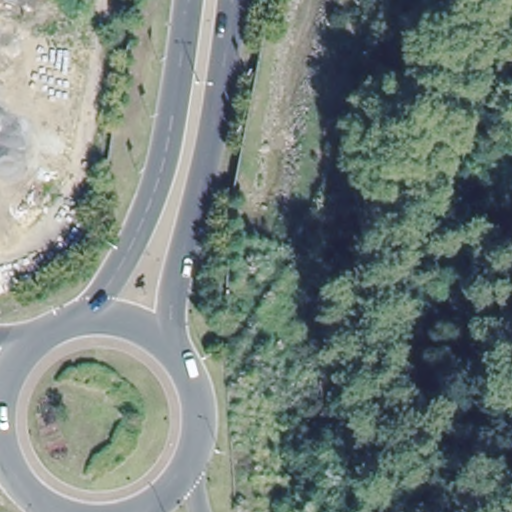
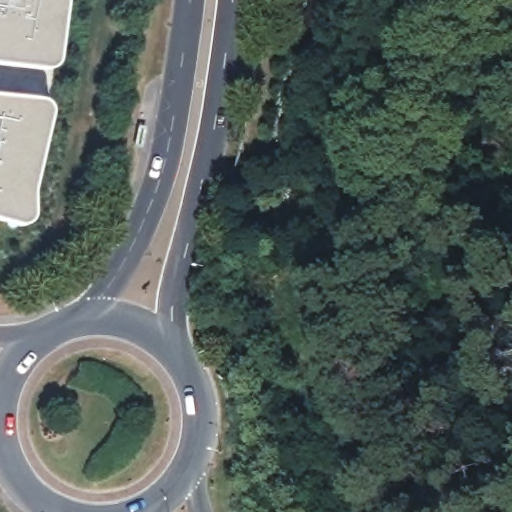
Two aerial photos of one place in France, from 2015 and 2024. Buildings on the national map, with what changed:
new [(44,68),(0,63),(0,0),(66,0),(58,58),(51,66),(44,68)]
new [(26,223),(16,223),(0,218),(0,96),(44,101),(50,108),(51,115),(32,191),(31,217),(26,223)]

